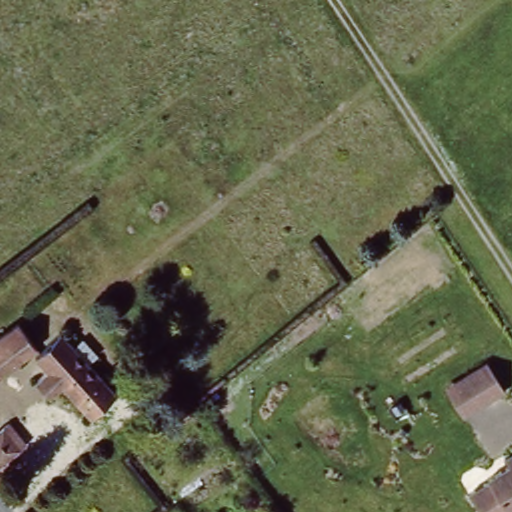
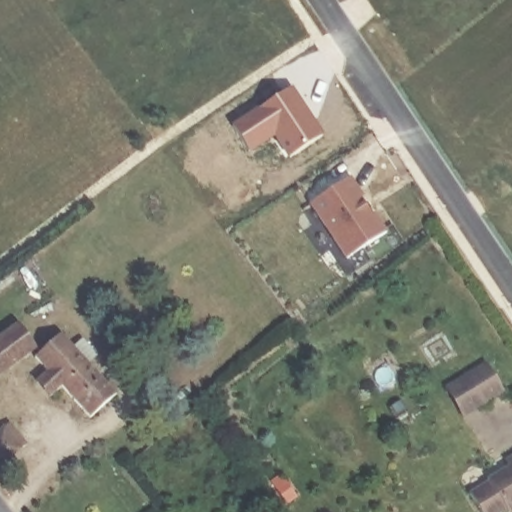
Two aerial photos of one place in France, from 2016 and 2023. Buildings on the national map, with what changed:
new [(290,85),(322,134),(289,155),(274,132),(248,149),(232,124),(290,85)]
new [(347,259),(310,204),(352,176),(365,198),(363,199),(372,213),(376,211),(389,232),(347,259)]
unchanged [(23,329),(37,349),(0,376),(0,336),(19,323),(23,329)]
unchanged [(59,337),(67,330),(113,386),(125,395),(92,419),(66,387),(54,397),(41,381),(52,371),(39,354),(53,342),(59,337)]
unchanged [(462,418),(444,388),(486,362),(505,393),(462,418)]
unchanged [(35,449),(0,479),(0,432),(13,422),(35,449)]
unchanged [(486,479),(509,465),(505,460),(512,456),(512,512),(507,512),(480,512),(468,494),(489,482),(486,479)]

